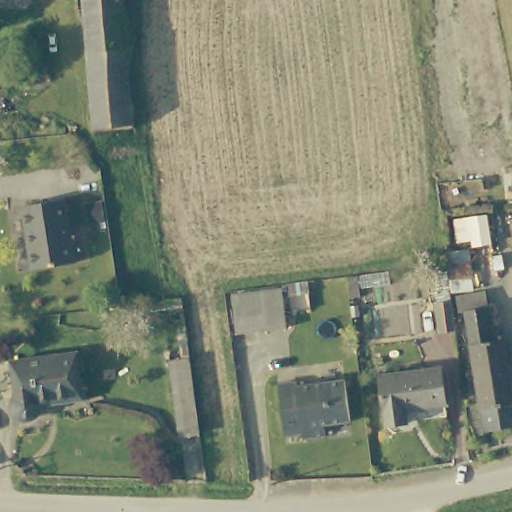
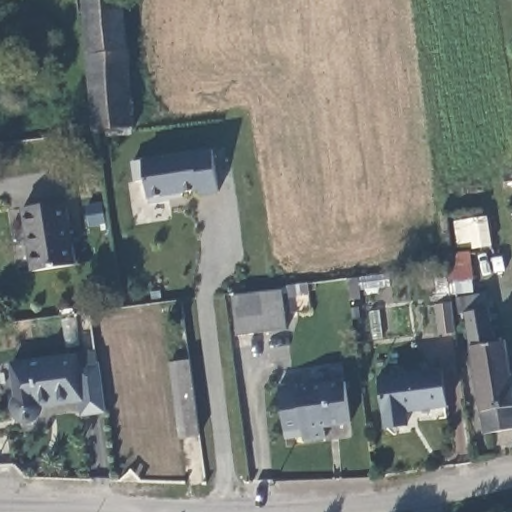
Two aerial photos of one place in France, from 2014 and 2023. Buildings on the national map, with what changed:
unchanged [(125,0),(137,133),(100,134),(96,136),(85,0),(125,0)]
new [(218,192),(199,196),(199,190),(146,198),(148,178),(134,181),(131,163),(144,160),(212,148),(218,192)]
unchanged [(79,268),(35,274),(25,207),(66,202),(79,268)]
demolished [(351,276),(352,285),(330,290),(327,279),(351,276)]
demolished [(307,304),(286,306),(285,299),(305,296),(307,304)]
unchanged [(488,299),(498,348),(510,346),(512,361),(512,438),(485,441),(474,367),(461,304),(488,299)]
unchanged [(282,339),(235,344),(230,308),(275,300),(282,339)]
unchanged [(441,343),(436,315),(455,312),(458,342),(441,343)]
unchanged [(85,404),(75,408),(73,405),(42,411),(36,422),(31,423),(24,423),(17,415),(13,369),(76,358),(85,404)]
unchanged [(181,446),(171,372),(190,369),(199,444),(181,446)]
unchanged [(450,409),(409,416),(410,429),(390,432),(382,384),(443,373),(450,409)]
unchanged [(342,382),(347,422),(320,427),(321,437),(300,439),(300,436),(282,437),(275,384),(294,384),(294,388),(342,382)]

